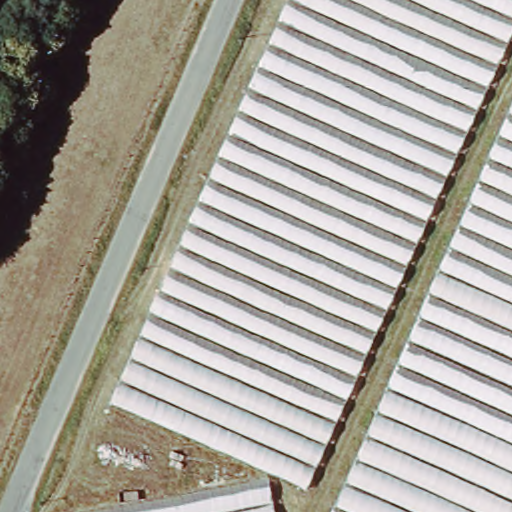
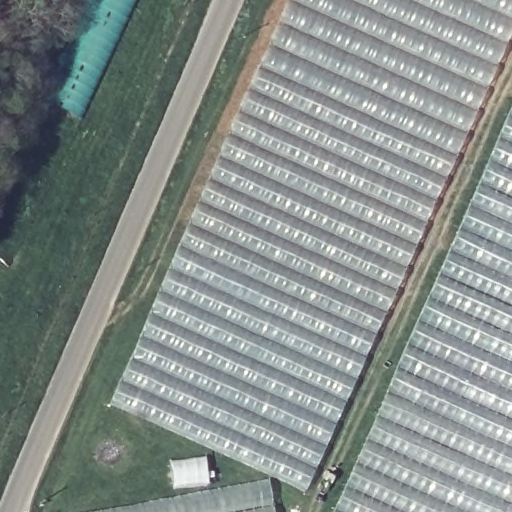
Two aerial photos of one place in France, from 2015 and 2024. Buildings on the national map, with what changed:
new [(70,37),(86,0),(132,0),(120,20),(120,34),(106,59),(97,65),(105,70),(82,111),(78,109),(73,118),(50,105),(66,76),(70,37)]
unchanged [(512,0),(512,27),(309,484),(115,397),(287,0),(512,0)]
unchanged [(512,111),(512,512),(331,512),(512,111)]
unchanged [(269,474),(276,512),(93,512),(269,474)]

